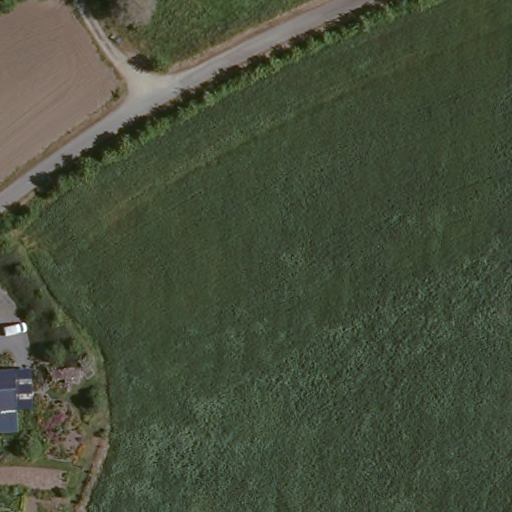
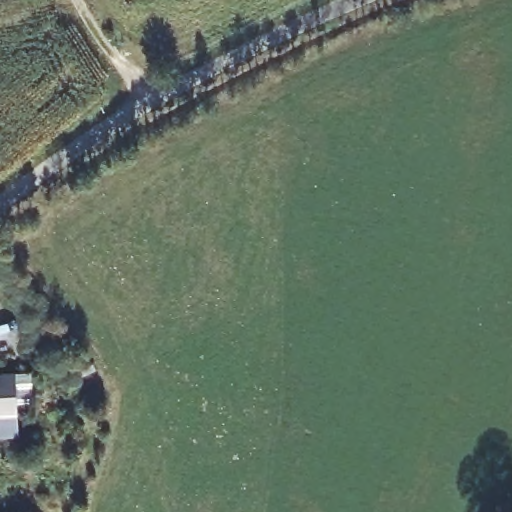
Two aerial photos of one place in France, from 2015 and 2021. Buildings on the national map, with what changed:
unchanged [(12,371),(16,411),(0,413),(0,372),(12,371)]

